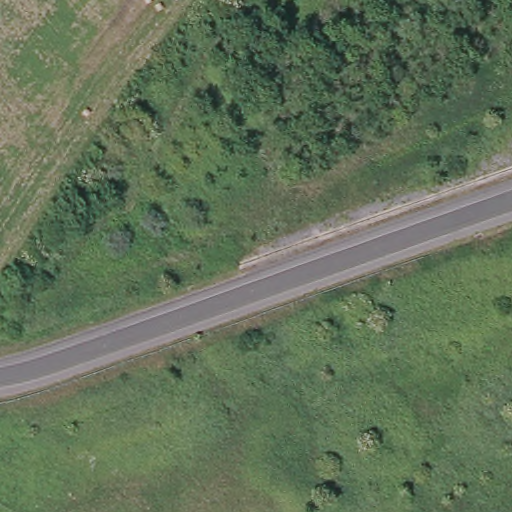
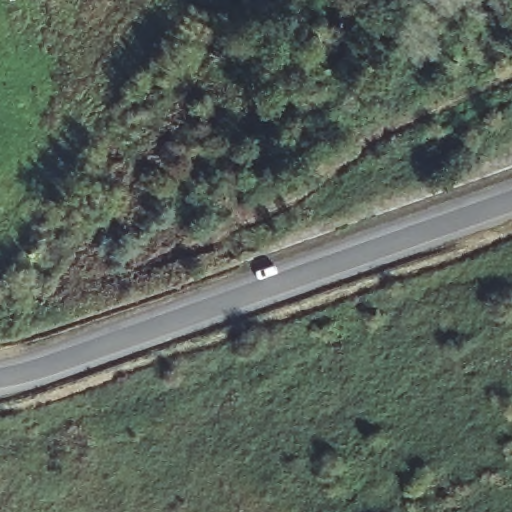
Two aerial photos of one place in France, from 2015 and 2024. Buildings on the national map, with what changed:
[]

